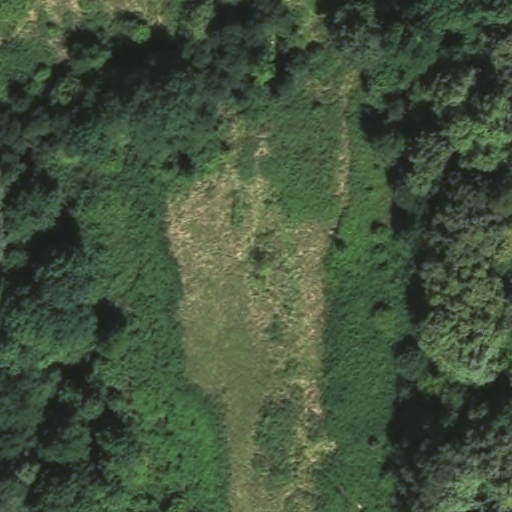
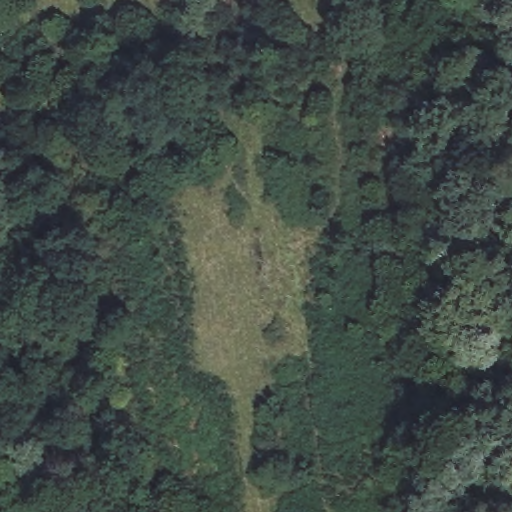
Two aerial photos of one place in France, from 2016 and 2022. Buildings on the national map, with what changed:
unchanged [(437,13),(400,0),(444,0),(437,13)]

